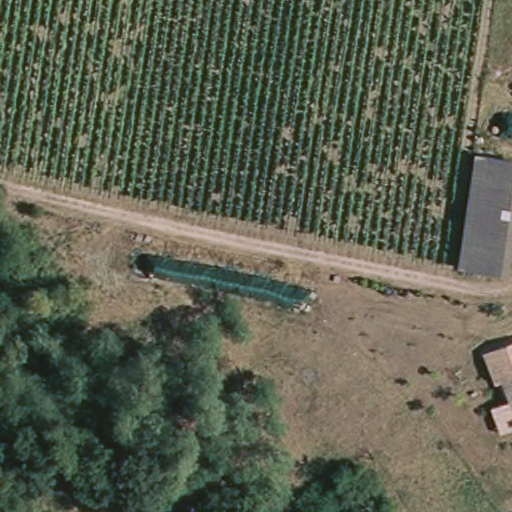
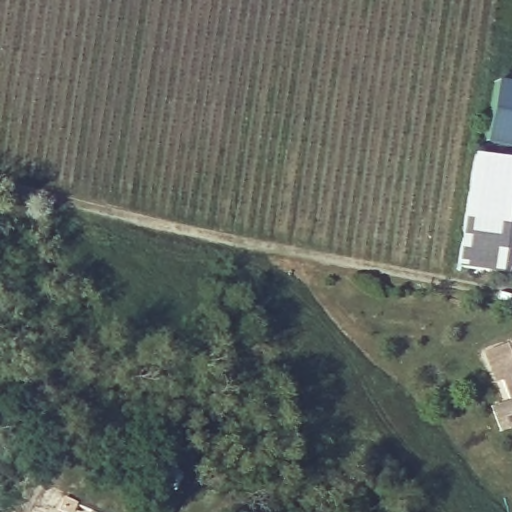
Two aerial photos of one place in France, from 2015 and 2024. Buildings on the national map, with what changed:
new [(512,84),(512,146),(482,141),(496,82),(512,84)]
unchanged [(500,268),(458,261),(475,154),(512,160),(512,189),(500,268)]
unchanged [(510,386),(504,388),(493,360),(512,353),(512,390),(510,386)]

